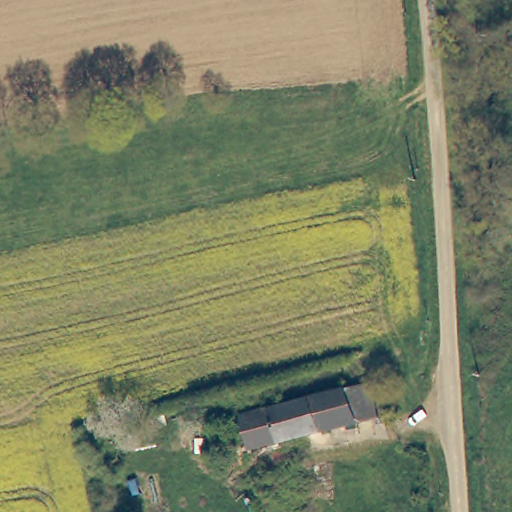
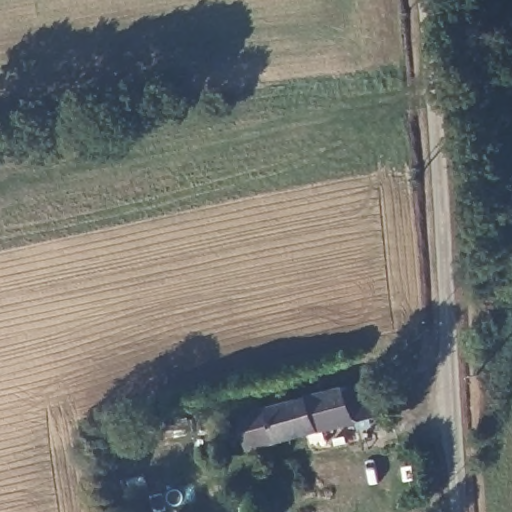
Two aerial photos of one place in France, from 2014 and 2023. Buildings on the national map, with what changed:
unchanged [(373,386),(381,418),(237,452),(232,430),(246,426),(244,416),(373,386)]

